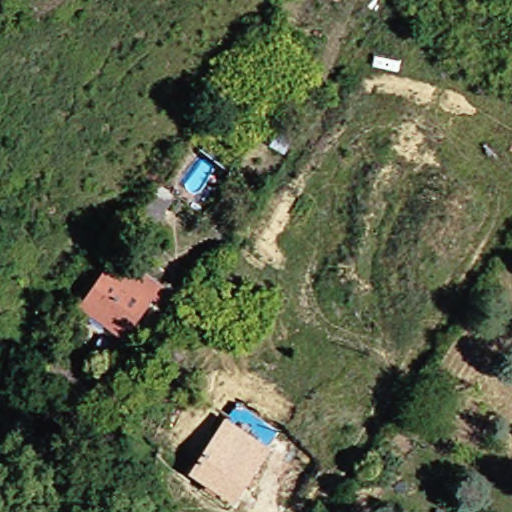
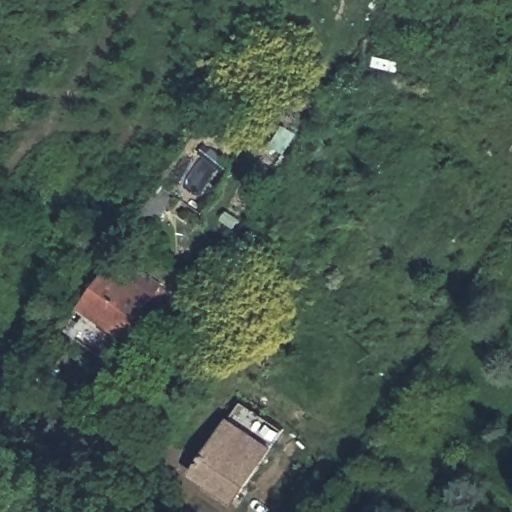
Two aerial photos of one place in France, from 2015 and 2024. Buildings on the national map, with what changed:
unchanged [(116,257),(164,286),(135,336),(129,335),(80,307),(116,257)]
unchanged [(258,464),(235,496),(190,467),(214,434),(258,464)]
unchanged [(324,512),(328,507),(337,512),(324,512)]

